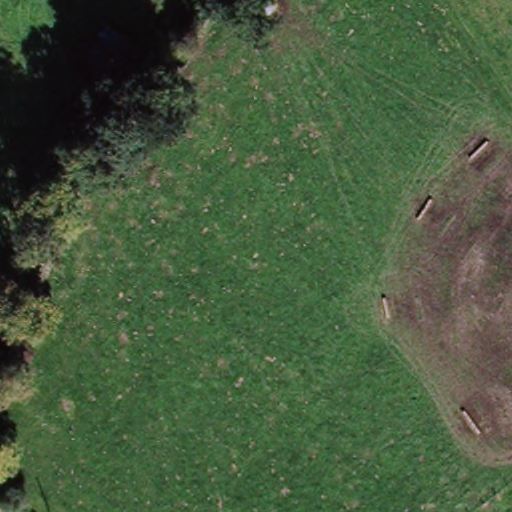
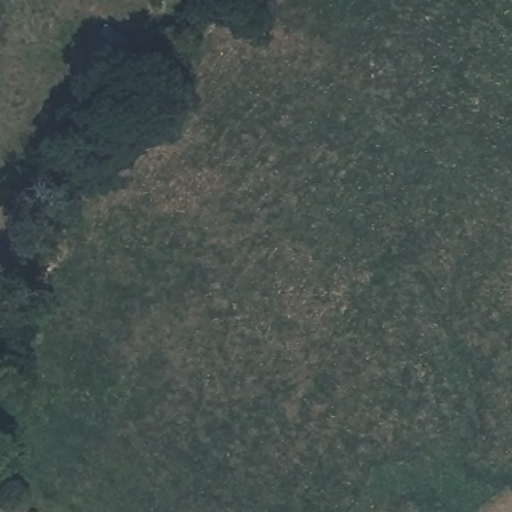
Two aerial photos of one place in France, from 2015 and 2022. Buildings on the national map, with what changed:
[]

